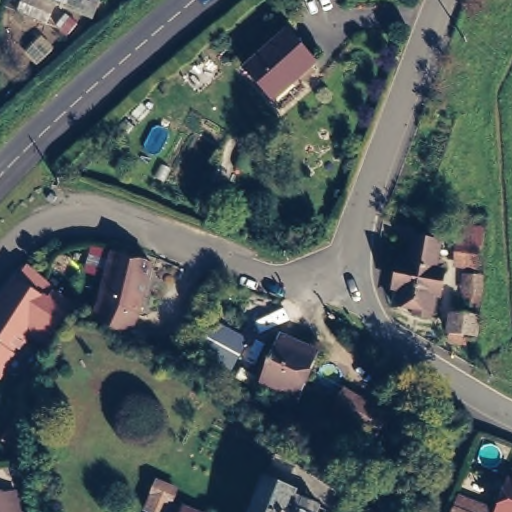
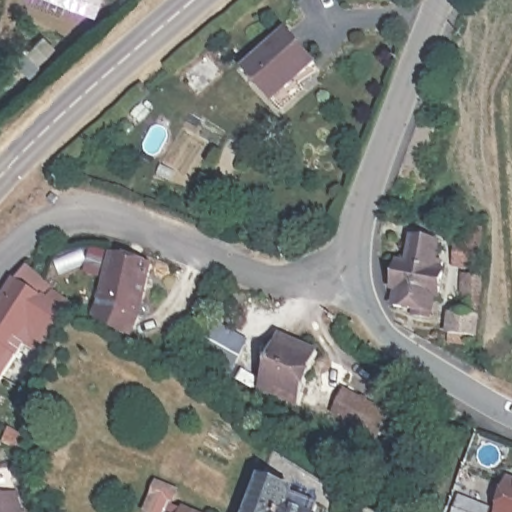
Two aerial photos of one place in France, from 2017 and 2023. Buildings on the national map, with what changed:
unchanged [(92,19),(56,5),(47,25),(16,13),(21,0),(99,0),(92,19)]
unchanged [(280,107),(272,99),(242,67),(285,29),(315,61),(295,78),(303,87),(280,107)]
unchanged [(489,231),(482,270),(455,262),(460,225),(489,231)]
unchanged [(439,242),(434,260),(439,262),(437,270),(440,271),(435,296),(432,296),(427,318),(410,315),(411,307),(392,305),(395,288),(392,287),(398,262),(405,262),(411,237),(439,242)]
unchanged [(157,258),(140,309),(139,310),(129,328),(97,315),(119,247),(157,258)]
unchanged [(23,269),(24,268),(47,291),(49,295),(72,310),(67,318),(49,346),(30,334),(26,338),(29,340),(1,382),(0,382),(0,305),(23,269)]
unchanged [(487,281),(484,305),(470,304),(473,279),(487,281)]
unchanged [(482,318),(481,337),(457,336),(458,315),(482,318)]
unchanged [(247,333),(230,377),(192,360),(209,316),(247,333)]
unchanged [(302,405),(259,390),(286,330),(324,351),(302,405)]
unchanged [(379,435),(333,410),(347,388),(390,412),(387,420),(399,425),(390,442),(379,435)]
unchanged [(512,476),(512,512),(495,512),(508,475),(512,476)]
unchanged [(164,476),(182,484),(170,512),(152,505),(164,476)]
unchanged [(301,500),(325,511),(325,512),(259,512),(270,487),(269,485),(300,498),(301,500)]
unchanged [(5,495),(20,490),(25,512),(0,512),(0,494),(2,493),(5,495)]
unchanged [(216,512),(186,512),(191,501),(216,512)]
unchanged [(453,512),(455,506),(471,512),(453,512)]

